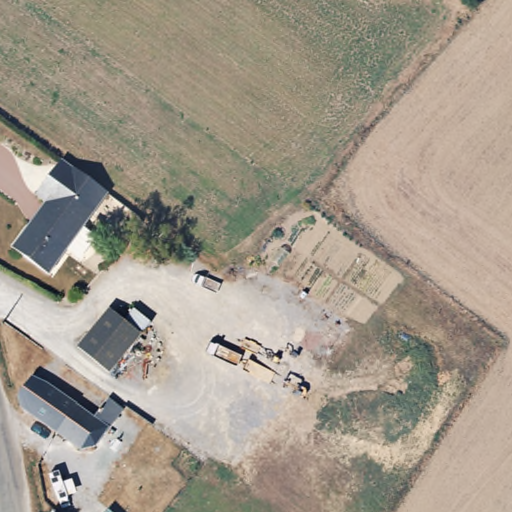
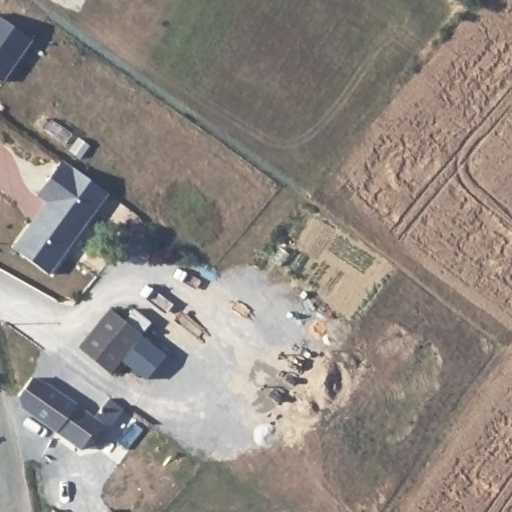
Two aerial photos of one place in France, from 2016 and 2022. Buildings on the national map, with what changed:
new [(32,39),(0,83),(0,18),(32,39)]
unchanged [(59,163),(104,197),(43,280),(8,254),(26,227),(31,230),(44,211),(41,210),(43,206),(33,199),(59,163)]
unchanged [(137,338),(109,375),(78,350),(106,314),(137,338)]
unchanged [(101,396),(116,408),(102,424),(88,444),(73,447),(29,417),(14,406),(11,394),(28,391),(30,390),(39,382),(41,381),(55,391),(88,414),(101,396)]
unchanged [(96,512),(97,510),(99,512),(96,512)]

